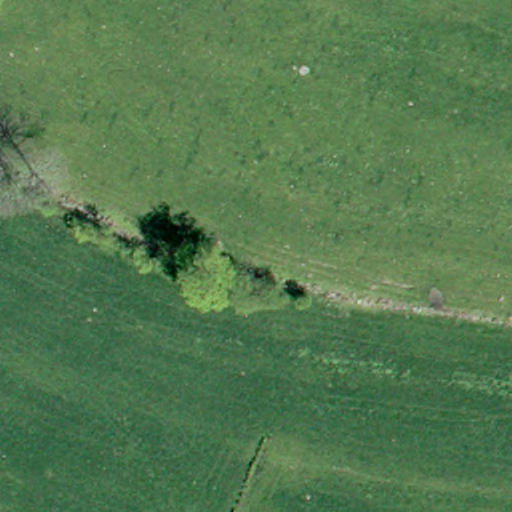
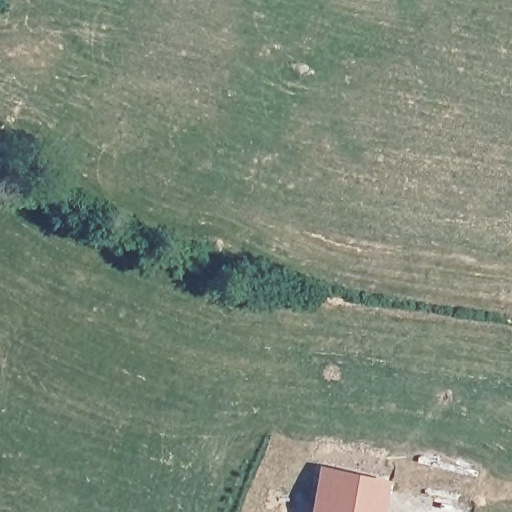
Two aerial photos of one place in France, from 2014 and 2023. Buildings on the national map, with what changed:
new [(381,484),(375,512),(313,512),(322,471),(381,484)]

